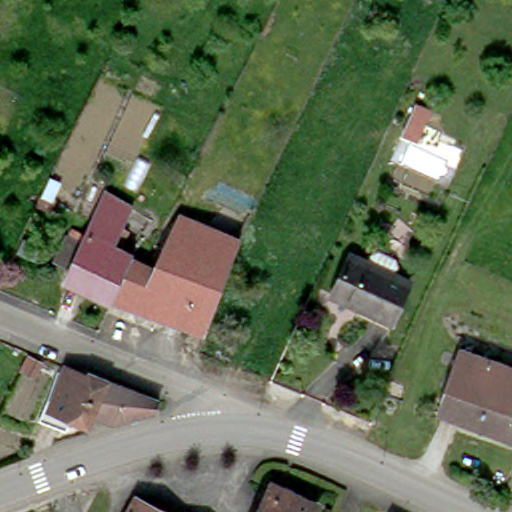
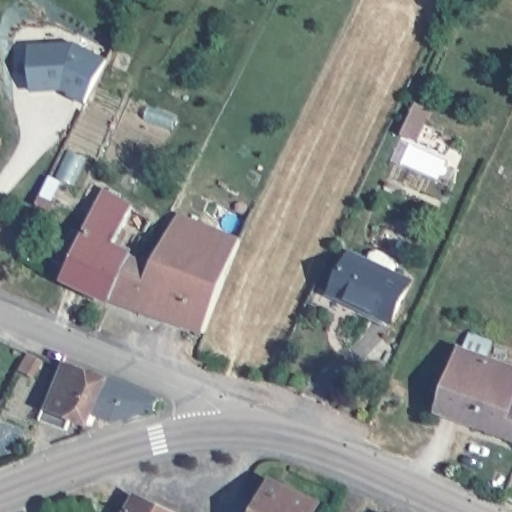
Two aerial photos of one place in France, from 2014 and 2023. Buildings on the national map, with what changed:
new [(77,42),(110,61),(87,102),(70,93),(72,92),(62,86),(55,87),(55,88),(35,89),(33,44),(77,42)]
unchanged [(72,236),(88,243),(98,222),(111,194),(140,207),(121,245),(143,254),(141,258),(120,303),(71,279),(75,269),(59,262),(72,236)]
unchanged [(52,207),(43,203),(44,200),(47,195),(57,199),(52,207)]
unchanged [(165,268),(193,215),(241,240),(209,337),(120,303),(141,258),(165,268)]
unchanged [(397,320),(382,313),(337,293),(355,254),(370,262),(374,255),(383,250),(400,256),(404,265),(399,275),(414,281),(397,320)]
unchanged [(464,347),(512,366),(512,432),(443,405),(464,347)]
unchanged [(45,358),(38,372),(28,367),(36,353),(45,358)]
unchanged [(74,416),(69,427),(47,417),(71,362),(92,372),(94,367),(114,376),(100,408),(94,423),(74,416)]
unchanged [(157,408),(119,416),(100,408),(114,376),(163,397),(157,408)]
unchanged [(187,512),(131,512),(143,489),(187,512)]
unchanged [(323,512),(270,512),(281,490),(325,508),(323,512)]
unchanged [(391,510),(395,512),(390,512),(391,510)]

